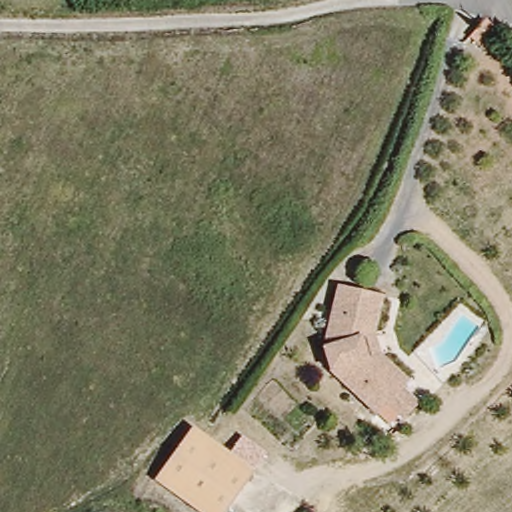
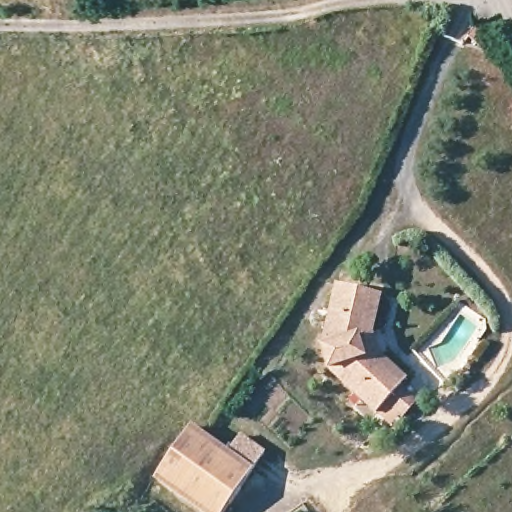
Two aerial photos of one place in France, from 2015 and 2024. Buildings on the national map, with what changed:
unchanged [(480,47),(465,34),(484,15),(499,28),(480,47)]
unchanged [(325,370),(319,347),(334,285),(370,293),(378,295),(372,331),(377,354),(402,377),(395,384),(372,410),(325,370)]
unchanged [(265,453),(253,466),(259,470),(228,512),(212,512),(157,476),(194,426),(232,452),(243,437),(265,453)]

